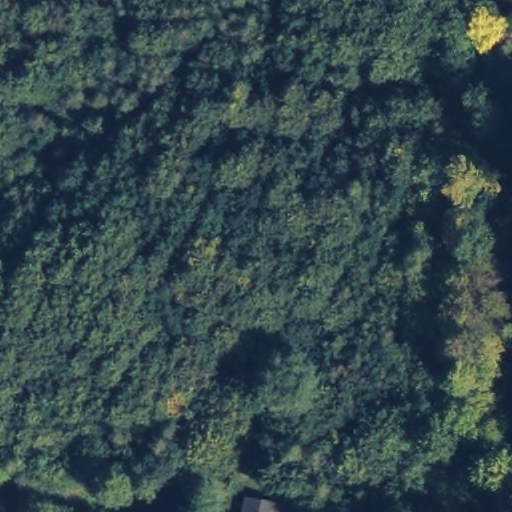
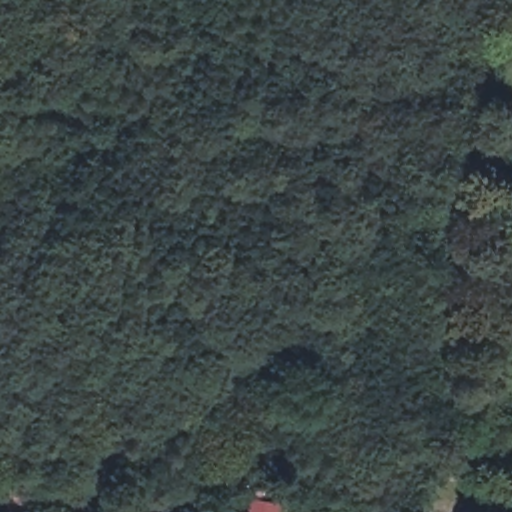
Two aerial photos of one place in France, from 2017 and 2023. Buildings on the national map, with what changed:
unchanged [(8,512),(11,485),(67,492),(66,512),(8,512)]
unchanged [(277,512),(244,512),(247,492),(280,498),(277,512)]

